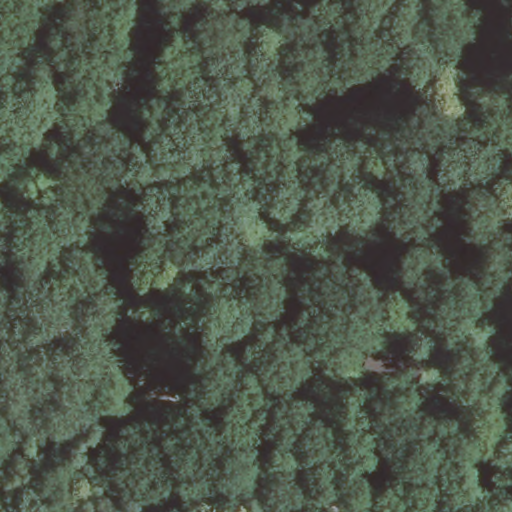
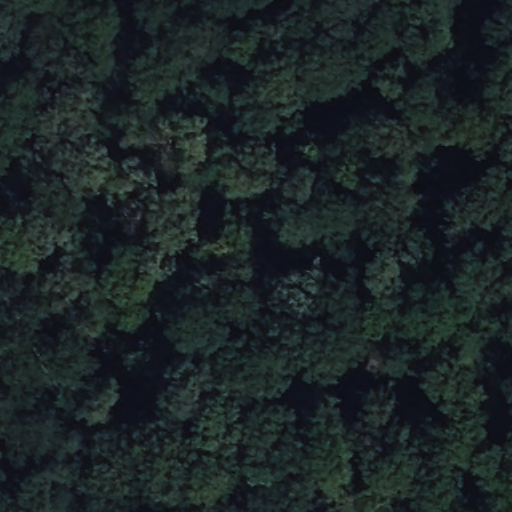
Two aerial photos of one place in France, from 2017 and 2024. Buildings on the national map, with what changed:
unchanged [(412,340),(423,343),(421,349),(430,351),(422,379),(392,372),(372,368),(380,339),(400,344),(410,347),(412,340)]

